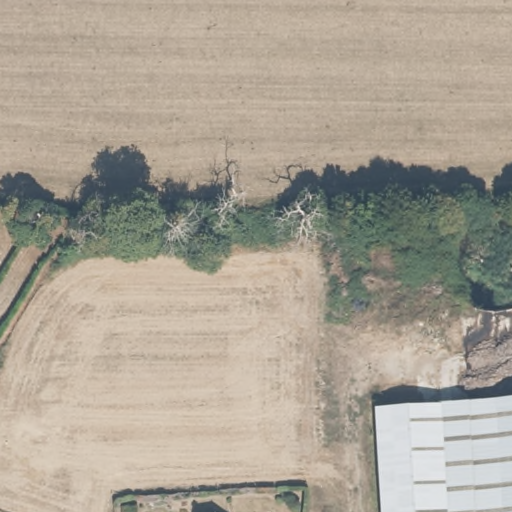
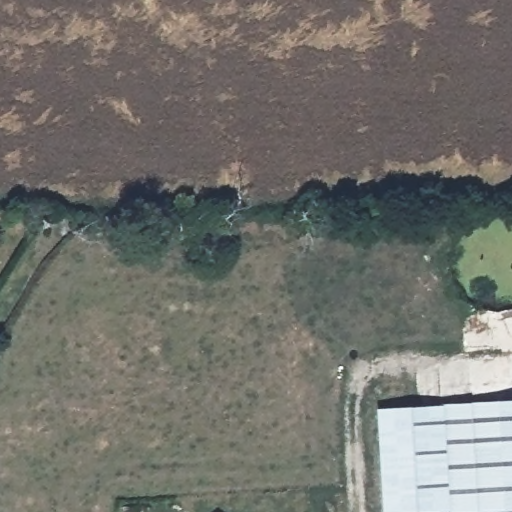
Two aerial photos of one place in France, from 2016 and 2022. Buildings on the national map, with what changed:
unchanged [(448,472),(443,403),(512,398),(512,468),(448,472)]
unchanged [(379,406),(443,403),(448,472),(384,476),(379,406)]
unchanged [(451,512),(448,472),(512,468),(512,512),(451,512)]
unchanged [(451,512),(386,512),(384,476),(448,472),(451,512)]

